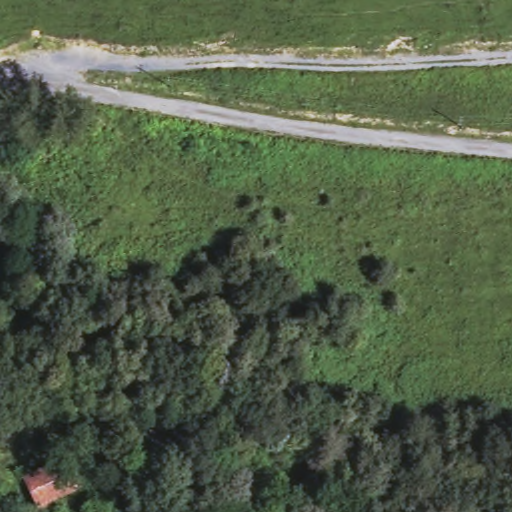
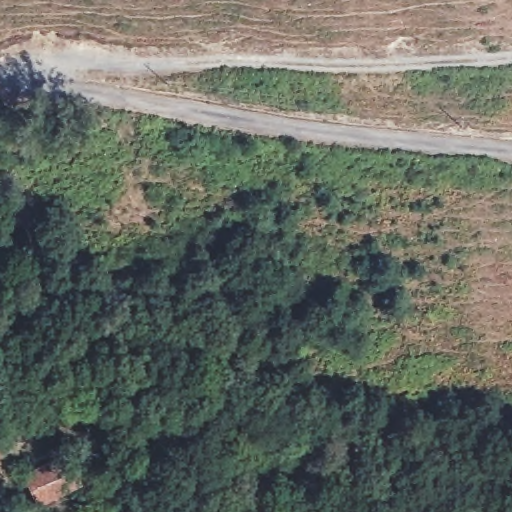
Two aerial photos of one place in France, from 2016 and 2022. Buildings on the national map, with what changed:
unchanged [(21,477),(78,452),(94,483),(56,500),(34,509),(21,477)]

